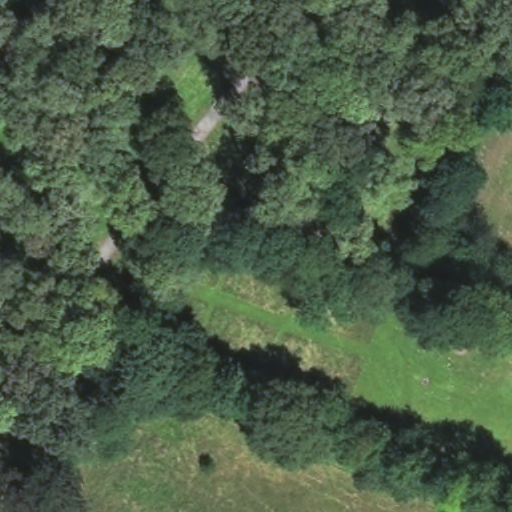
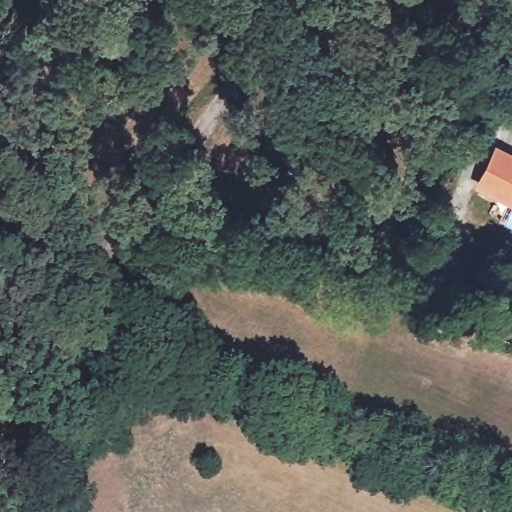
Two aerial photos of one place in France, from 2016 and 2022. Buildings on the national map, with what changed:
new [(512,154),(512,208),(474,188),(495,145),(512,154)]

